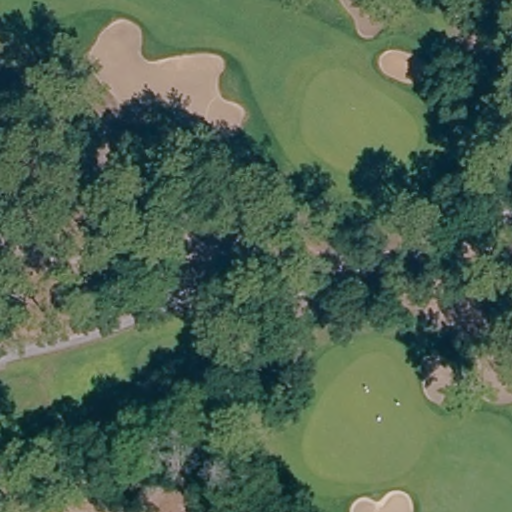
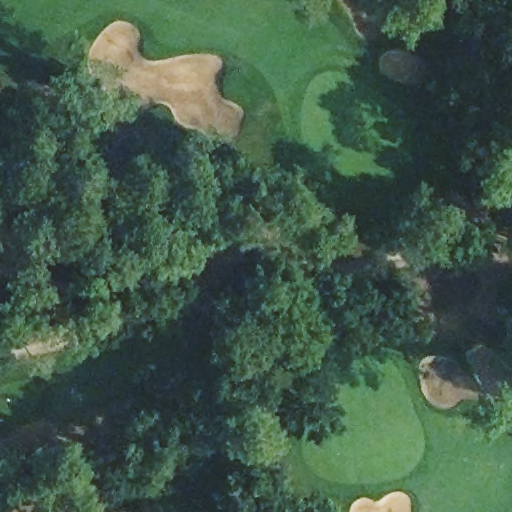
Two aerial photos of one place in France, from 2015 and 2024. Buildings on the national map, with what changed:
[]

